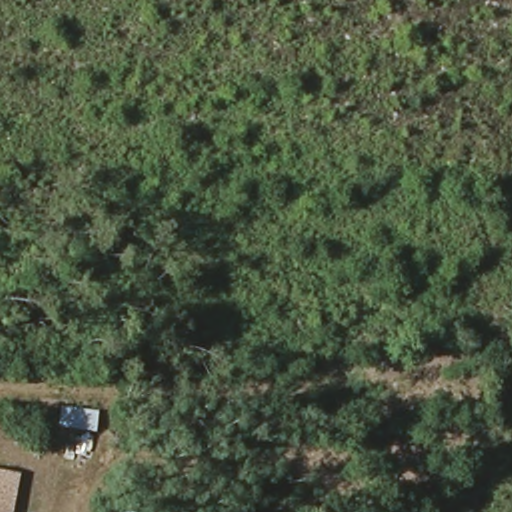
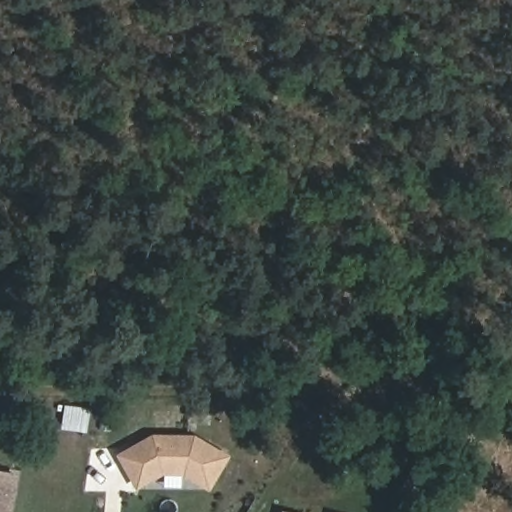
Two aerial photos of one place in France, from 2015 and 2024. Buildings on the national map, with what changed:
new [(156,435),(197,436),(229,456),(211,486),(187,471),(164,471),(140,485),(122,454),(156,435)]
unchanged [(0,512),(0,474),(14,477),(6,512),(0,512)]
new [(288,512),(283,512),(283,511),(288,512)]

